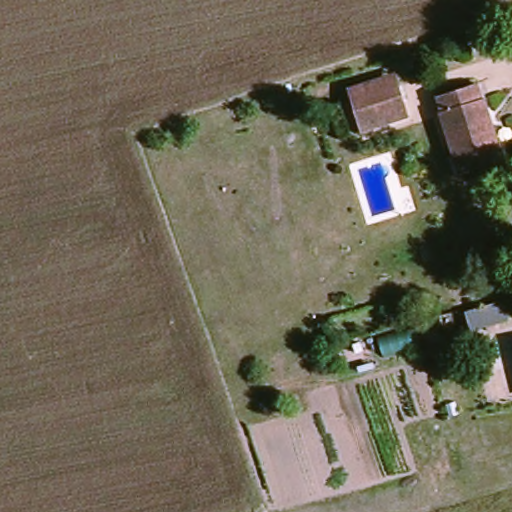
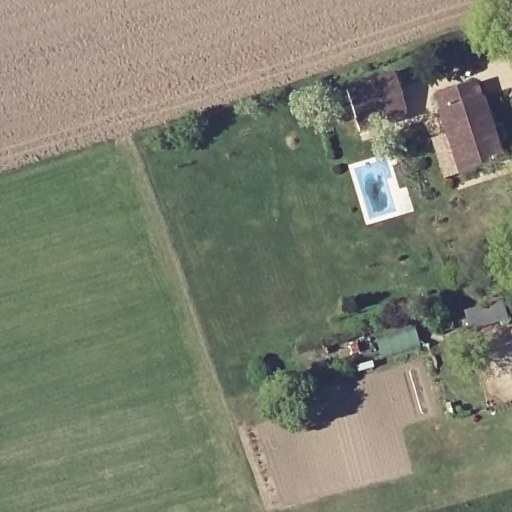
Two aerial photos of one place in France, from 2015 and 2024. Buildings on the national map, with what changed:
unchanged [(359,129),(350,99),(346,87),(395,72),(400,83),(408,113),(359,129)]
unchanged [(438,98),(476,86),(481,101),(483,101),(503,165),(460,179),(440,114),(442,114),(438,98)]
unchanged [(469,322),(464,302),(499,294),(504,313),(469,322)]

